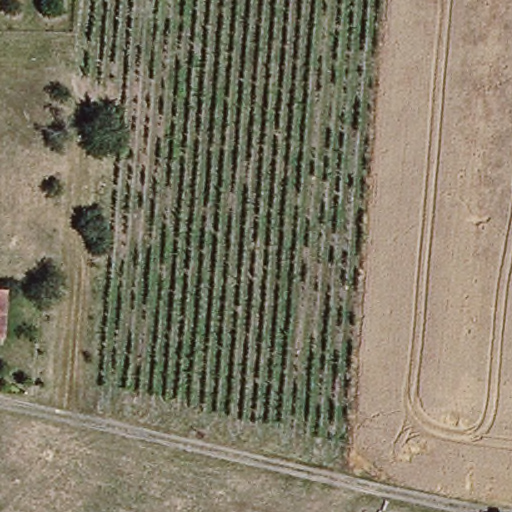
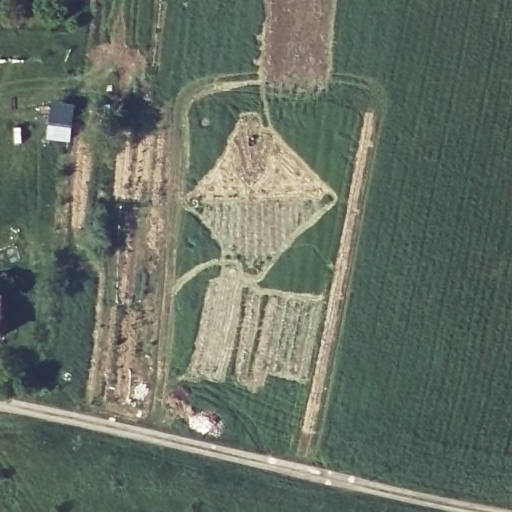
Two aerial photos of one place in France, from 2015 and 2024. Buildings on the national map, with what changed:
unchanged [(0,293),(5,293),(4,336),(0,336),(0,293)]

